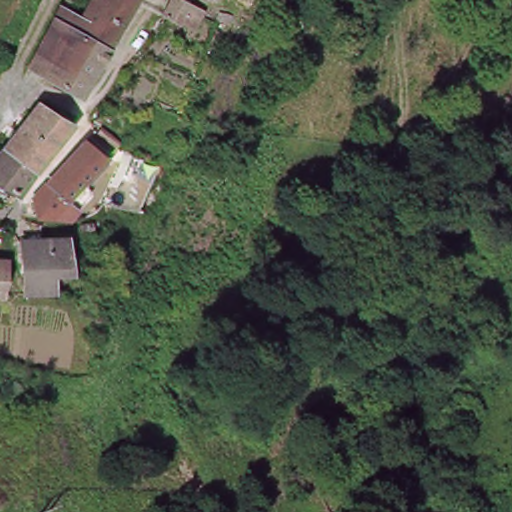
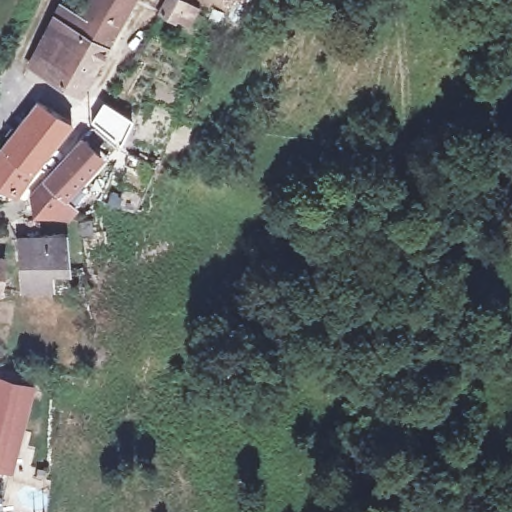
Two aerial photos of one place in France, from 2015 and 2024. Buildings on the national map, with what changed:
unchanged [(95,64),(78,93),(32,66),(54,20),(74,30),(91,0),(136,0),(99,67),(95,64)]
unchanged [(198,9),(191,21),(179,15),(178,18),(161,10),(167,0),(187,0),(186,2),(198,9)]
unchanged [(73,124),(34,172),(3,147),(12,137),(38,102),(73,124)]
unchanged [(38,200),(37,192),(45,184),(84,140),(103,157),(63,200),(49,215),(38,200)]
unchanged [(34,172),(17,195),(0,187),(0,150),(3,147),(34,172)]
unchanged [(20,239),(65,235),(70,270),(54,271),(55,290),(25,290),(20,239)]
demolished [(1,290),(0,289),(0,254),(4,255),(1,290)]
new [(3,300),(0,300),(0,264),(6,265),(3,300)]
new [(0,375),(35,383),(10,473),(0,471),(0,375)]

